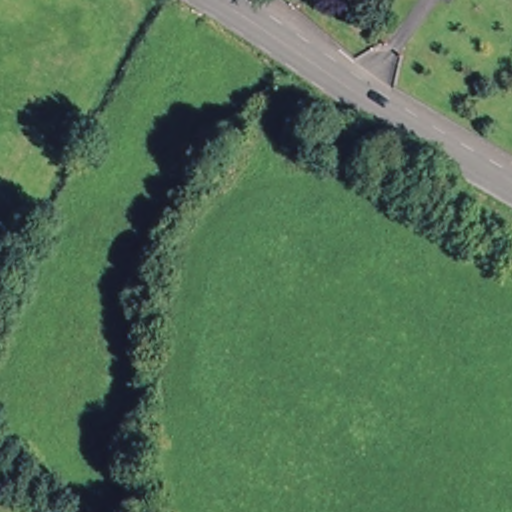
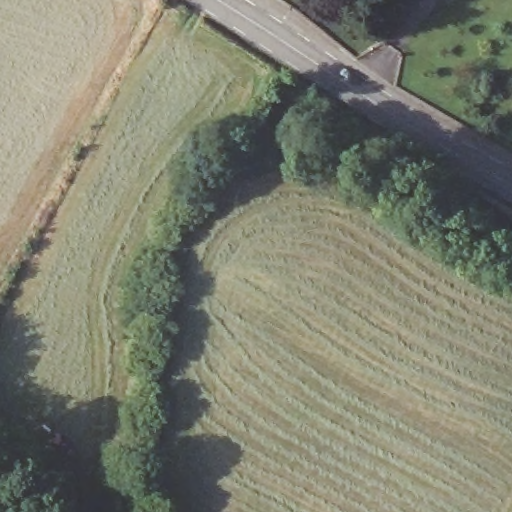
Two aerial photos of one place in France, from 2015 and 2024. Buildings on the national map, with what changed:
[]

